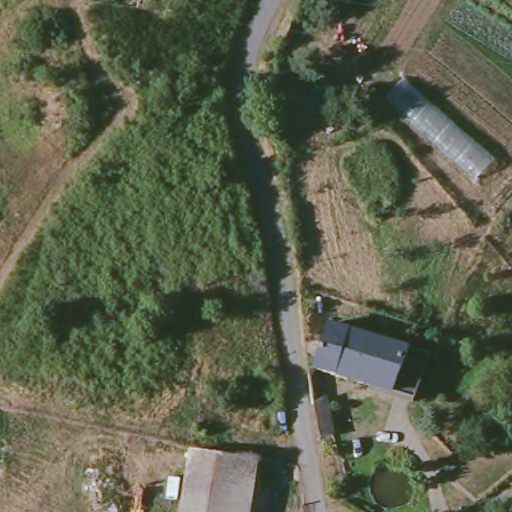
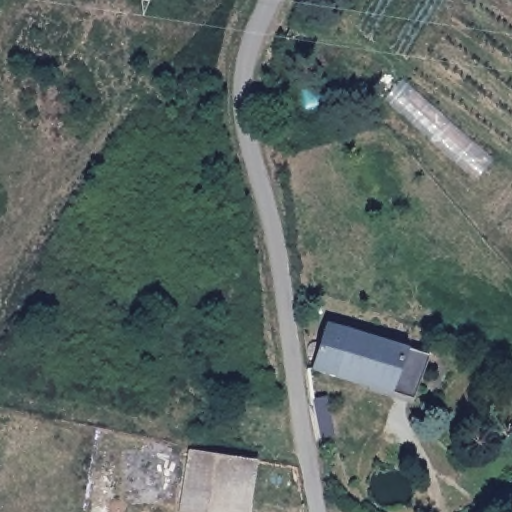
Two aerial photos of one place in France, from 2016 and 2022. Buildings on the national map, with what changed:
unchanged [(405,79),(493,160),(477,180),(386,100),(405,79)]
unchanged [(309,368),(325,321),(405,348),(390,395),(309,368)]
unchanged [(425,356),(412,402),(390,395),(405,348),(425,356)]
unchanged [(319,436),(313,396),(327,393),(333,435),(319,436)]
unchanged [(183,510),(194,451),(258,462),(250,512),(194,512),(183,510)]

